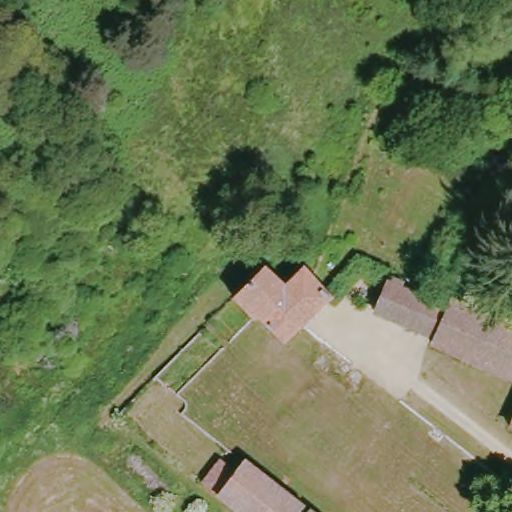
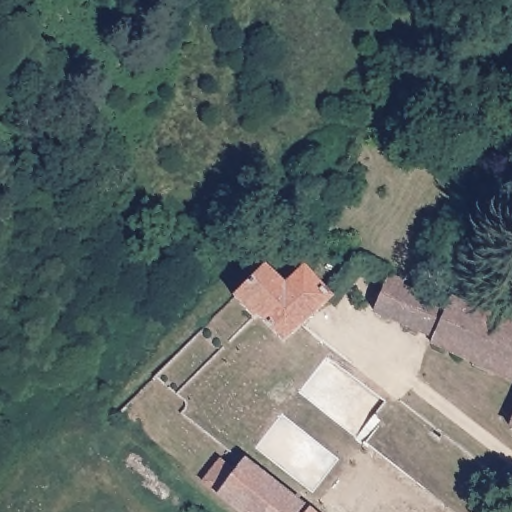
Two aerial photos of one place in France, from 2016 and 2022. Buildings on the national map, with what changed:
unchanged [(332,296),(285,341),(259,314),(256,317),(236,292),(266,260),(286,278),(305,260),(311,267),(332,296)]
unchanged [(448,298),(451,293),(512,321),(512,374),(430,341),(433,335),(375,308),(386,278),(425,292),(427,287),(448,298)]
unchanged [(236,473),(246,463),(303,506),(299,512),(244,512),(205,481),(219,460),(236,473)]

